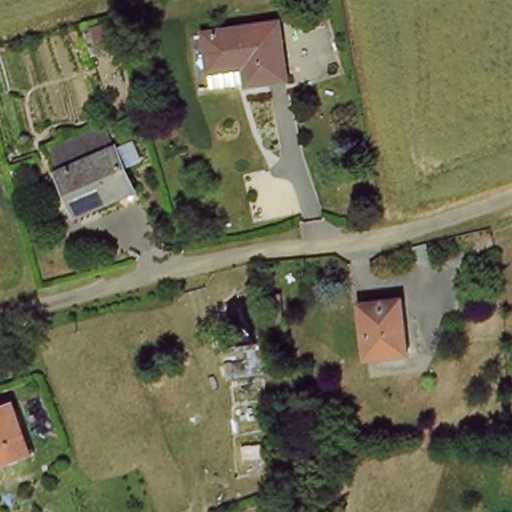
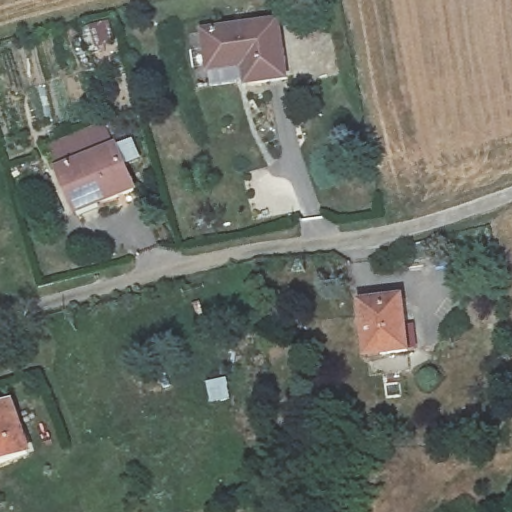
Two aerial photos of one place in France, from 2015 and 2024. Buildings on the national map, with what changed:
unchanged [(210,81),(200,35),(274,19),(287,83),(252,90),(215,99),(210,81)]
unchanged [(112,136),(129,179),(72,203),(55,161),(112,136)]
unchanged [(404,303),(412,340),(372,351),(362,313),(404,303)]
unchanged [(32,454),(0,465),(0,410),(17,404),(32,454)]

